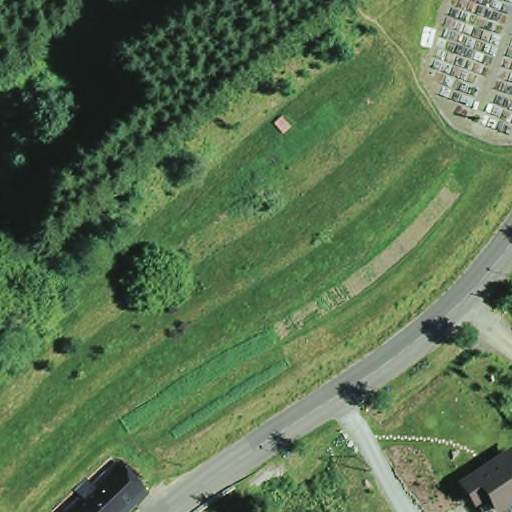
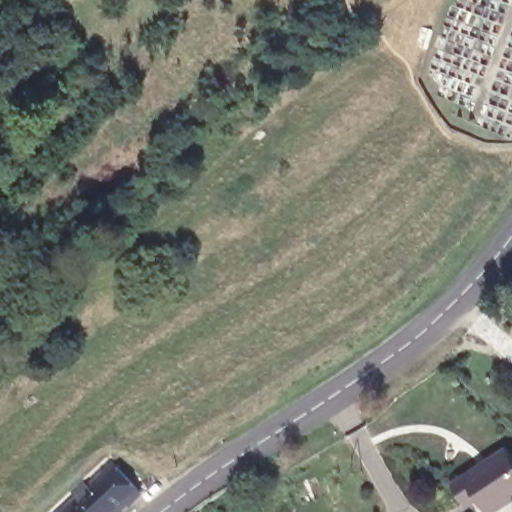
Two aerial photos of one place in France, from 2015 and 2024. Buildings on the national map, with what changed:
unchanged [(431,29),(426,47),(416,45),(421,26),(431,29)]
unchanged [(494,512),(489,512),(481,499),(470,506),(454,482),(504,444),(512,456),(512,500),(494,512)]
unchanged [(124,512),(67,512),(113,468),(140,496),(124,512)]

